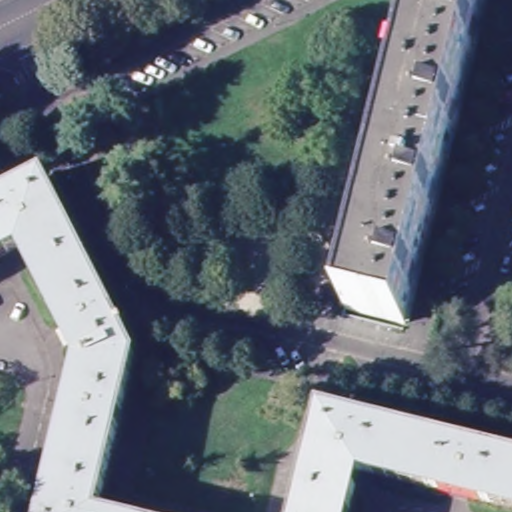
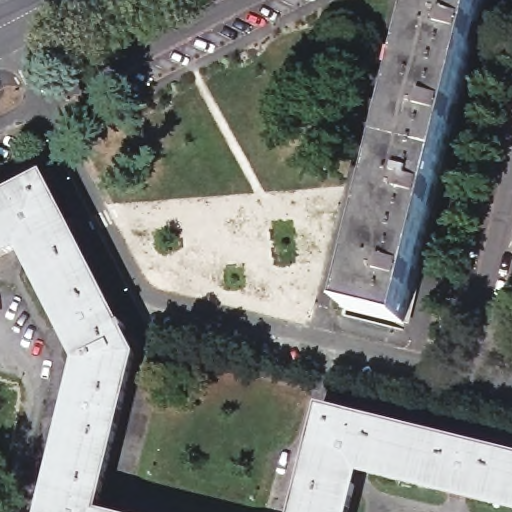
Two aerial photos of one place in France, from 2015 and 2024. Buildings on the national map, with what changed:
unchanged [(346,309),(423,0),(486,0),(404,323),(346,309)]
unchanged [(66,222),(58,226),(65,241),(74,237),(134,355),(96,512),(45,512),(79,360),(28,259),(32,257),(24,242),(0,255),(0,200),(43,177),(66,222)]
unchanged [(303,473),(314,476),(317,461),(308,458),(320,409),(512,456),(512,507),(356,470),(352,483),(355,487),(349,512),(294,512),(303,473)]

